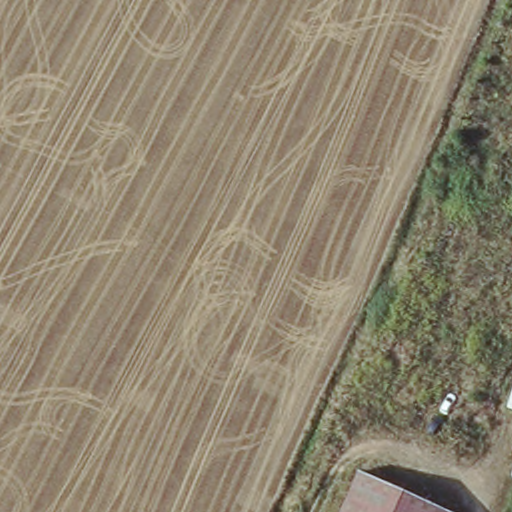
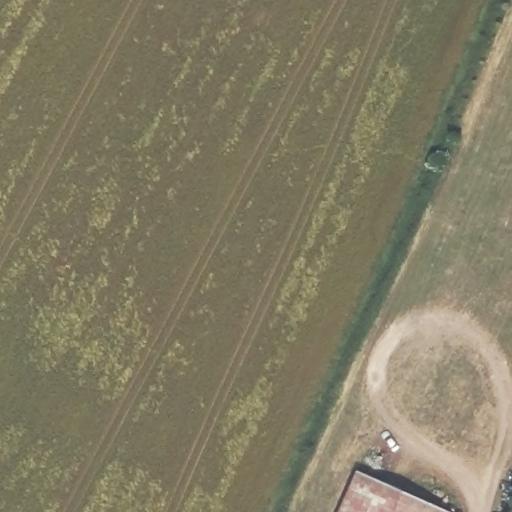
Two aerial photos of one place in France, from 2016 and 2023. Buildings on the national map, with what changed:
unchanged [(359,476),(438,512),(342,512),(359,476)]

